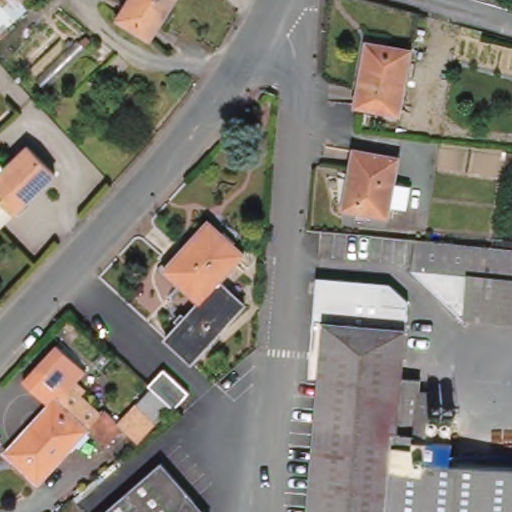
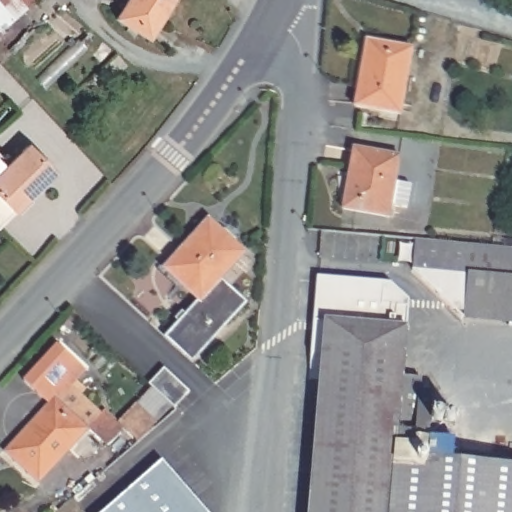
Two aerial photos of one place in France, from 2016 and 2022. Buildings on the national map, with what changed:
unchanged [(125,0),(175,0),(146,45),(112,22),(125,0)]
unchanged [(355,107),(362,44),(409,48),(402,111),(355,107)]
unchanged [(0,221),(0,159),(7,166),(26,149),(52,177),(18,212),(0,221)]
unchanged [(409,210),(393,208),(392,217),(345,213),(351,154),(398,158),(395,184),(411,185),(409,210)]
unchanged [(246,253),(221,281),(245,304),(193,360),(167,335),(200,301),(163,267),(209,218),(246,253)]
unchanged [(460,320),(410,275),(413,242),(512,251),(512,283),(462,278),(460,320)]
unchanged [(462,278),(512,283),(512,325),(460,320),(462,278)]
unchanged [(311,320),(315,279),(390,286),(406,303),(404,330),(400,379),(417,380),(418,391),(428,394),(425,414),(457,415),(452,464),(512,468),(512,512),(305,512),(319,322),(311,320)]
unchanged [(88,371),(78,380),(88,389),(83,395),(102,414),(106,409),(118,421),(151,388),(149,385),(163,369),(188,393),(172,410),(168,407),(138,443),(123,428),(105,447),(87,432),(38,485),(3,452),(46,405),(21,381),(56,344),(88,371)]
unchanged [(105,512),(156,466),(197,512),(105,512)]

